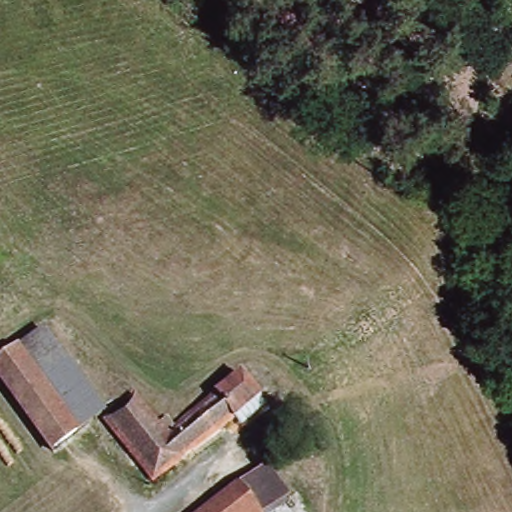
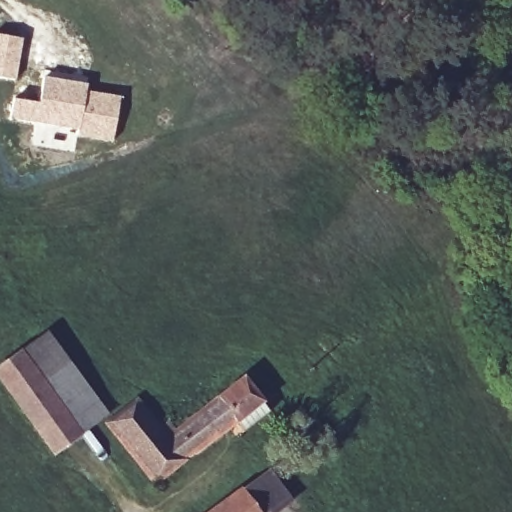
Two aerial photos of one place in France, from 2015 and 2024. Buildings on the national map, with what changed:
new [(11,80),(0,78),(0,36),(18,39),(11,80)]
new [(10,100),(35,104),(40,78),(83,85),(81,92),(115,98),(108,142),(73,136),(74,130),(6,119),(10,100)]
unchanged [(56,456),(0,381),(0,365),(46,330),(108,413),(56,456)]
unchanged [(159,422),(168,415),(176,427),(244,375),(263,400),(157,482),(109,422),(140,397),(159,422)]
unchanged [(276,512),(205,512),(267,466),(291,500),(276,512)]

